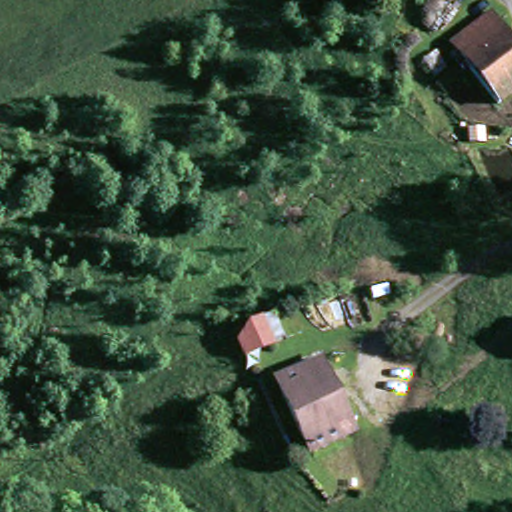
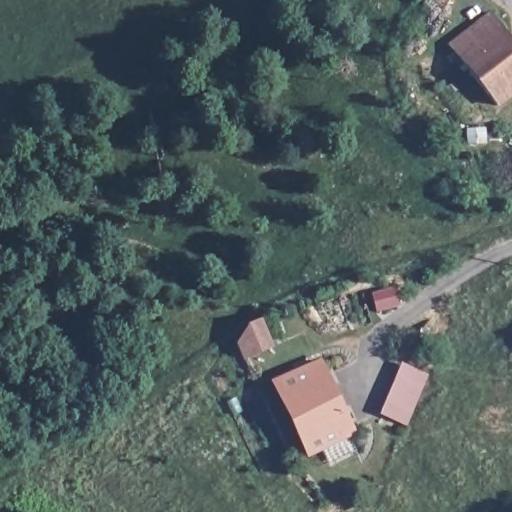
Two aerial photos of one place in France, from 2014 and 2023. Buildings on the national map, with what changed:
unchanged [(495,110),(448,49),(490,18),(512,48),(512,98),(495,110)]
unchanged [(246,325),(258,320),(270,346),(242,357),(236,342),(246,325)]
unchanged [(348,427),(303,448),(268,380),(313,357),(348,427)]
new [(427,375),(405,425),(380,413),(401,363),(427,375)]

